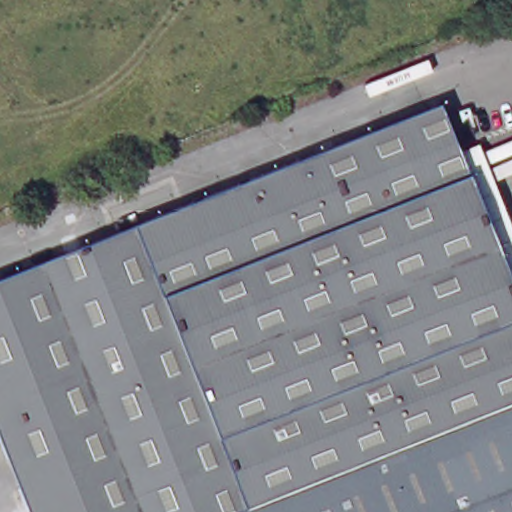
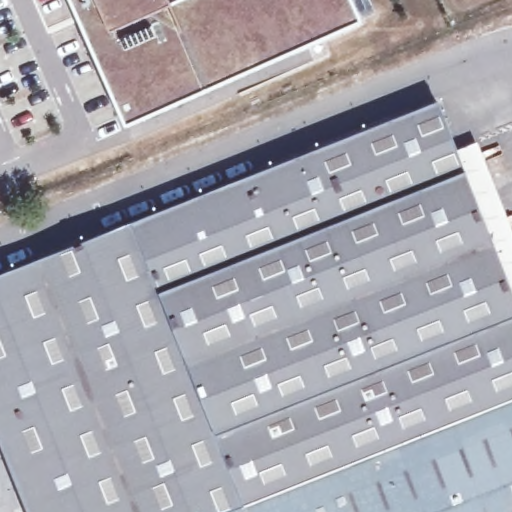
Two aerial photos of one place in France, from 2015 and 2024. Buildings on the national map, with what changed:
new [(127,126),(72,0),(352,0),(362,22),(127,126)]
unchanged [(0,435),(0,277),(440,103),(512,284),(512,512),(30,512),(0,435)]

